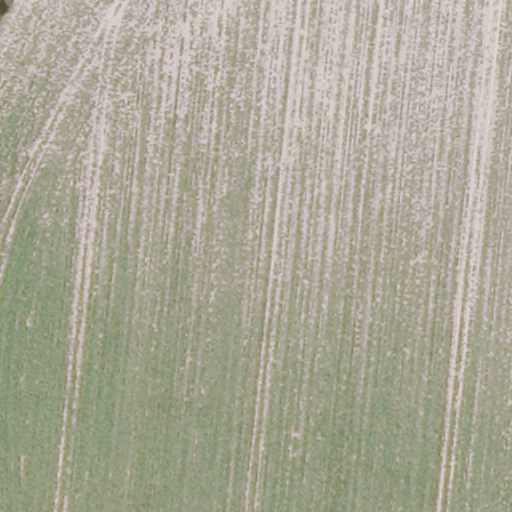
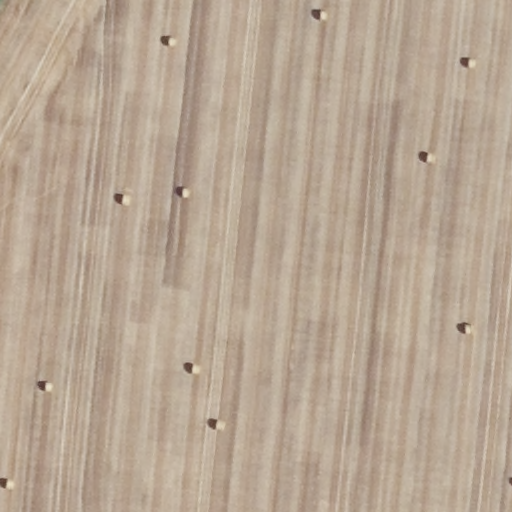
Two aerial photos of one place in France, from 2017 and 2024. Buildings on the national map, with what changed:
[]

